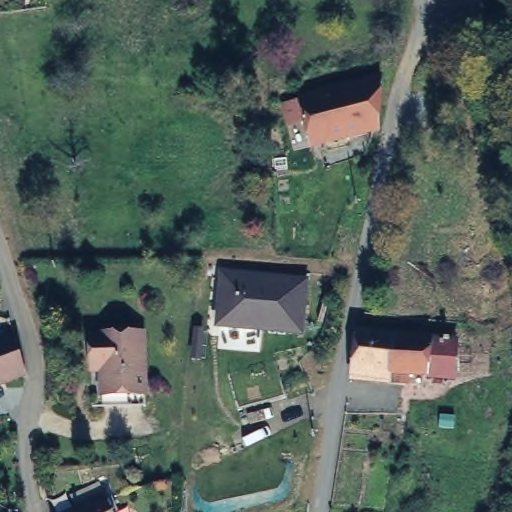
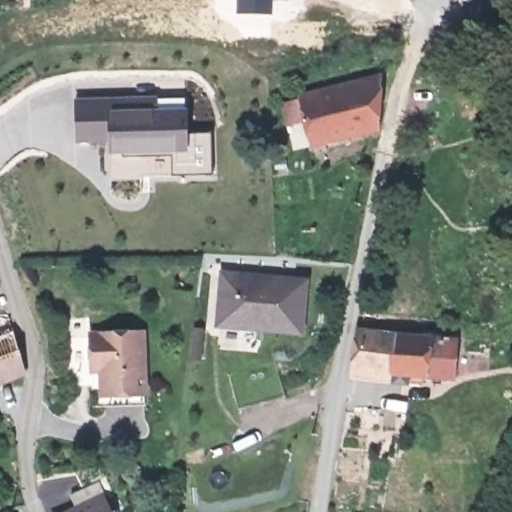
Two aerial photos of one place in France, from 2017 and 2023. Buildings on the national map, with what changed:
unchanged [(374,124),(304,134),(298,82),(379,72),(374,124)]
new [(171,152),(111,153),(110,141),(76,142),(74,100),(156,97),(158,110),(187,109),(187,133),(210,133),(211,174),(173,175),(171,152)]
unchanged [(308,286),(301,333),(220,319),(228,273),(308,286)]
unchanged [(28,364),(28,366),(0,377),(0,328),(10,323),(28,364)]
unchanged [(402,366),(356,362),(362,323),(436,330),(463,333),(459,371),(431,368),(429,379),(401,377),(402,366)]
unchanged [(105,403),(105,394),(103,368),(91,369),(90,355),(88,331),(142,325),(148,390),(148,399),(105,403)]
unchanged [(68,489),(98,478),(114,512),(63,512),(75,506),(68,489)]

